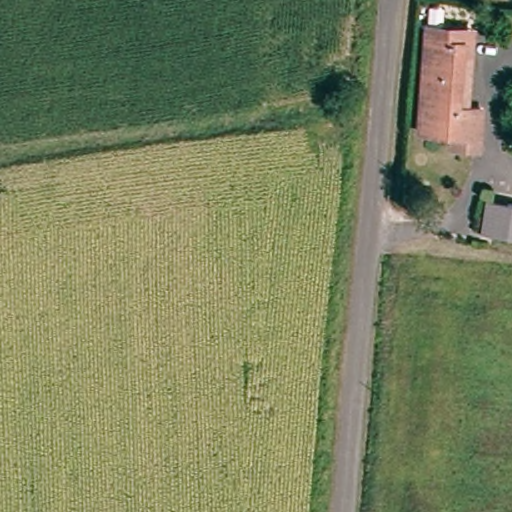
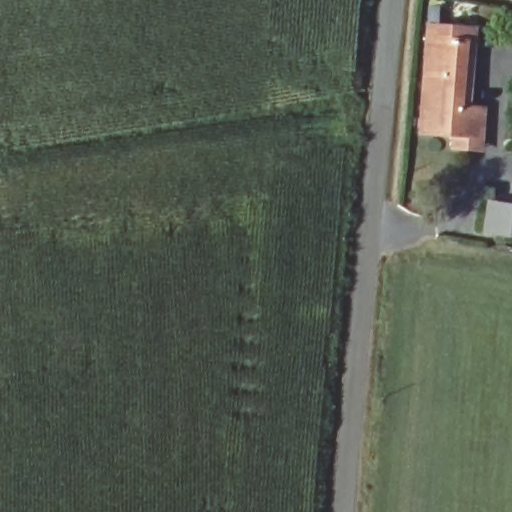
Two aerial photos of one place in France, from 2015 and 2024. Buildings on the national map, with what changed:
unchanged [(448,140),(412,136),(424,24),(475,26),(468,105),(484,106),(481,151),(448,152),(448,140)]
unchanged [(486,199),(512,203),(512,240),(480,237),(486,199)]

